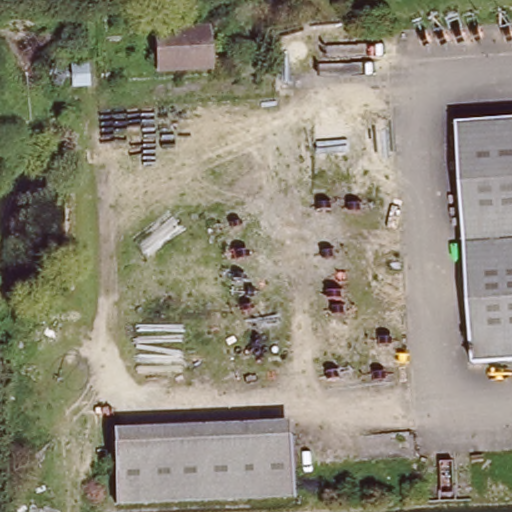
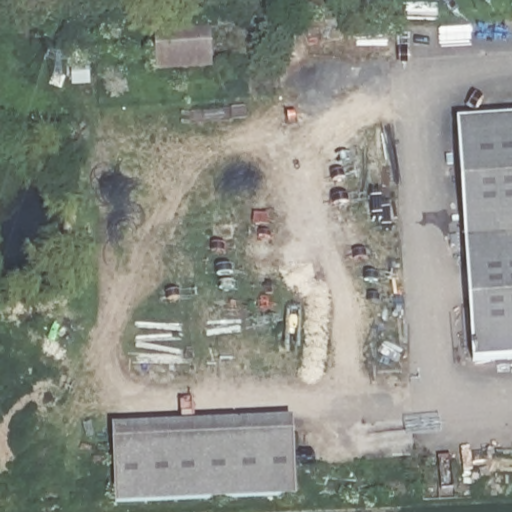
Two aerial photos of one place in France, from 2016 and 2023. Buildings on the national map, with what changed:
unchanged [(154,68),(152,31),(212,26),(215,64),(154,68)]
unchanged [(459,122),(512,118),(512,358),(477,361),(459,122)]
unchanged [(117,442),(293,433),(296,495),(120,504),(117,442)]

